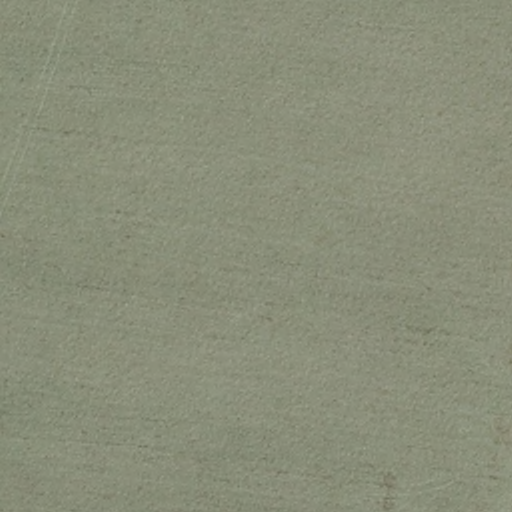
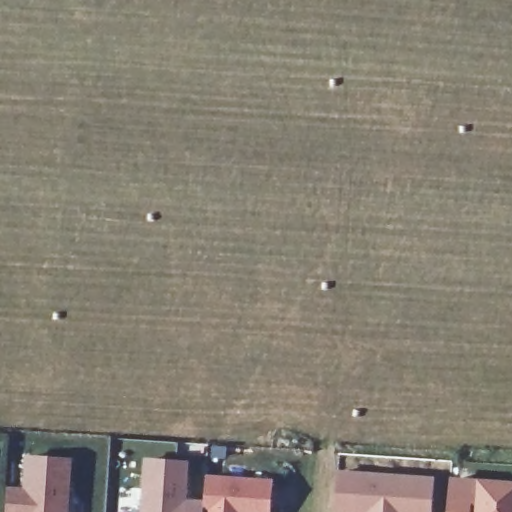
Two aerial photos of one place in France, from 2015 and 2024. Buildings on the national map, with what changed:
new [(25,488),(27,455),(68,458),(65,512),(5,512),(7,487),(25,488)]
new [(145,457),(185,460),(183,498),(203,500),(202,512),(142,512),(145,457)]
new [(363,506),(356,505),(355,510),(333,509),(335,469),(430,475),(428,512),(363,512),(363,506)]
new [(203,500),(204,476),(268,480),(267,512),(248,512),(247,510),(240,510),(240,512),(202,512),(203,500)]
new [(449,476),(512,480),(512,512),(447,512),(449,476)]
new [(356,505),(363,506),(363,511),(355,510),(356,505)]

